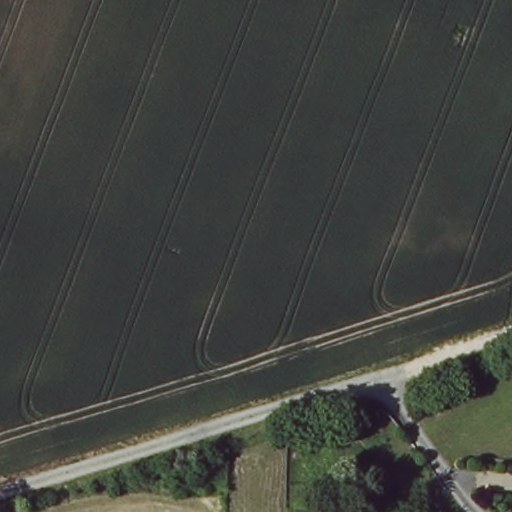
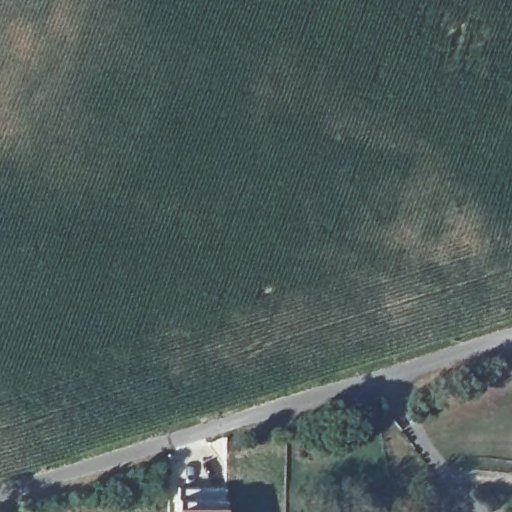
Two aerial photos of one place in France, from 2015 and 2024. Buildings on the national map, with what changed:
new [(178,504),(178,487),(226,487),(226,503),(226,512),(178,512),(178,504)]

